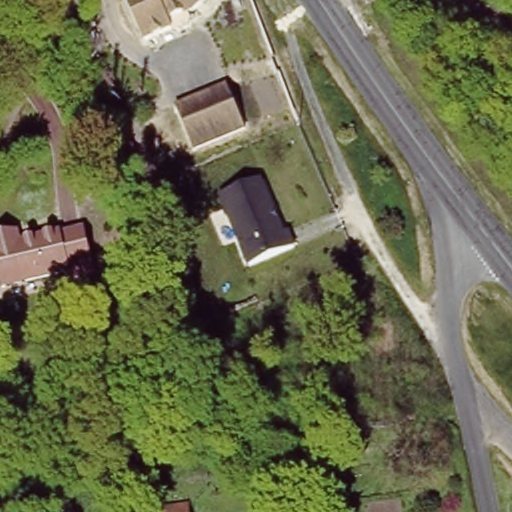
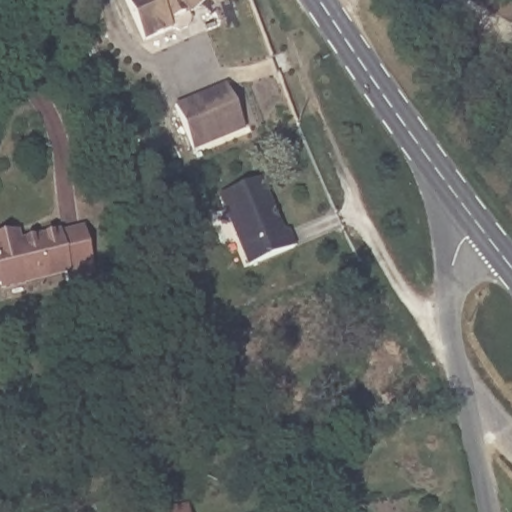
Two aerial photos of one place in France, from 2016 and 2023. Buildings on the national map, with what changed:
unchanged [(143,40),(126,0),(207,0),(173,30),(143,40)]
unchanged [(196,152),(177,107),(228,86),(246,131),(196,152)]
unchanged [(220,196),(264,178),(294,247),(248,265),(220,196)]
unchanged [(21,229),(22,237),(86,226),(93,271),(73,275),(72,268),(0,280),(0,233),(21,229)]

